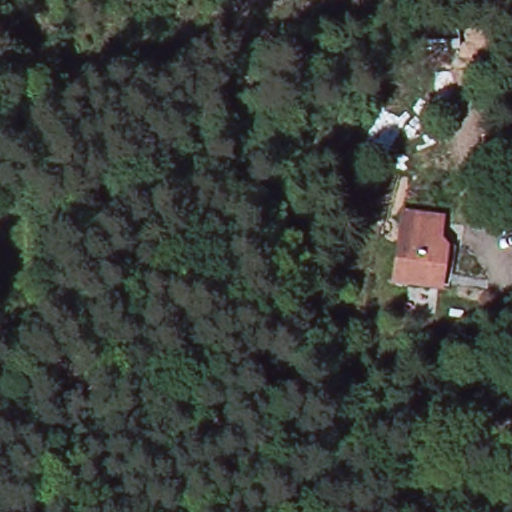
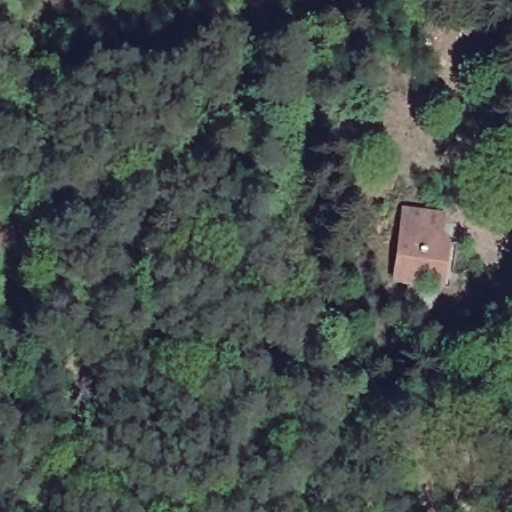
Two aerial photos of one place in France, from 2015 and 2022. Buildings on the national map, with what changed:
unchanged [(389,275),(394,239),(398,216),(428,220),(425,244),(433,245),(446,246),(440,290),(427,288),(383,282),(384,275),(389,275)]

